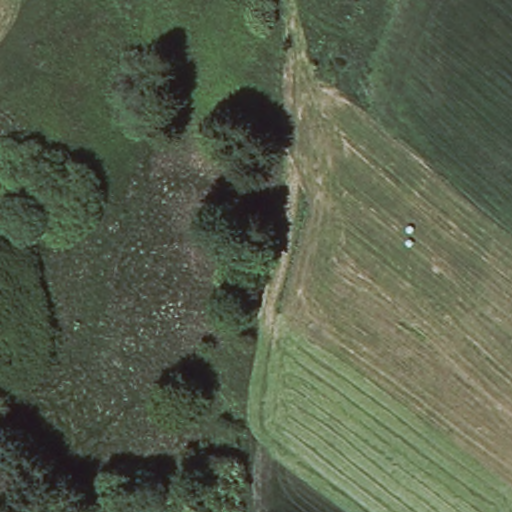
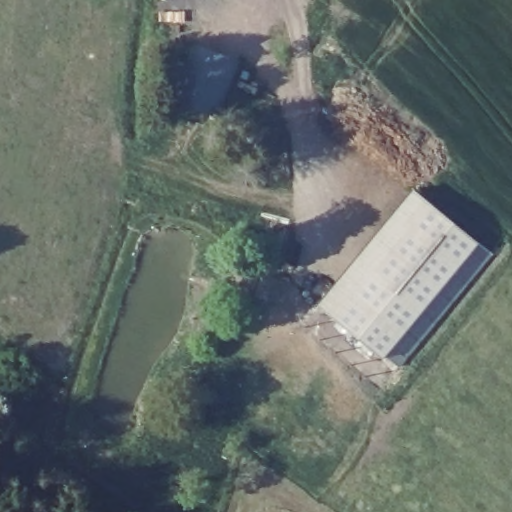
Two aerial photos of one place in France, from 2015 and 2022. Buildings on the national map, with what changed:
demolished [(362,66),(378,86),(360,102),(346,84),(362,66)]
new [(480,241),(383,358),(316,303),(412,187),(480,241)]

